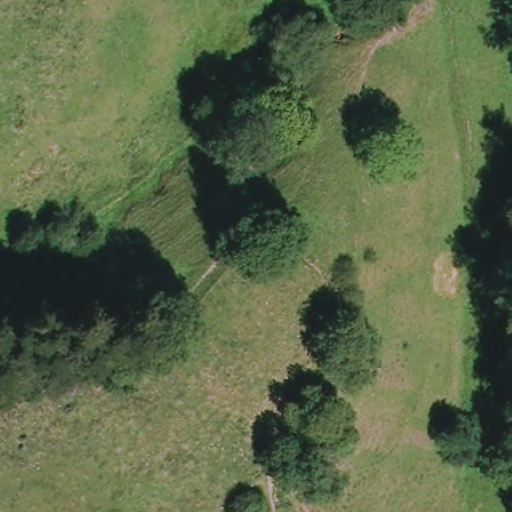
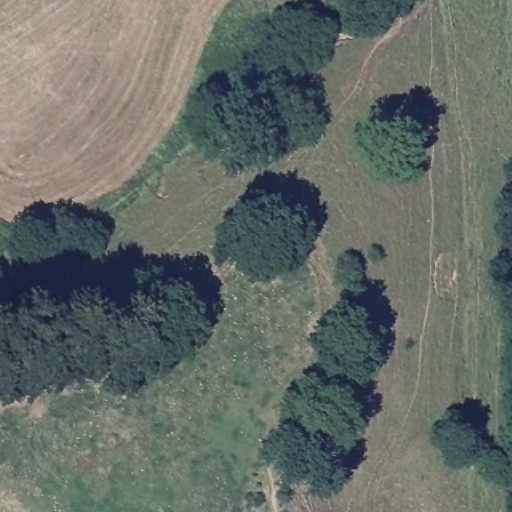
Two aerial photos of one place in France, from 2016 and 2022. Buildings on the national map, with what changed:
[]

